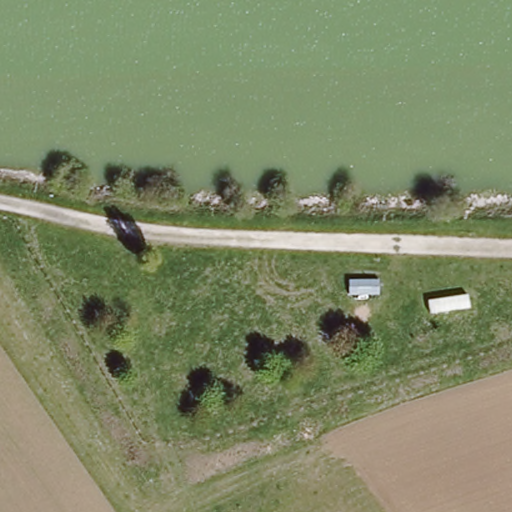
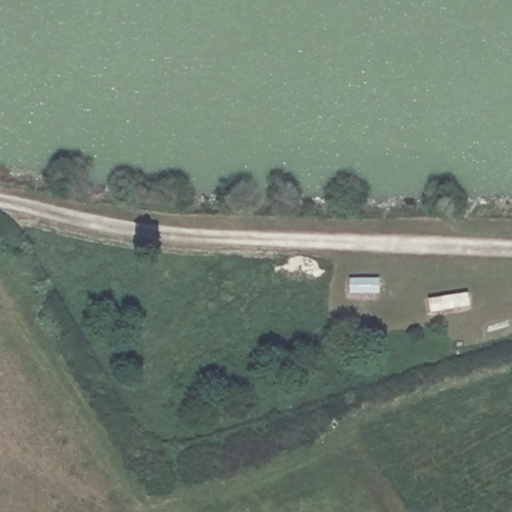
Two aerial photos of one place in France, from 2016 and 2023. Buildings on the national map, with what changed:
unchanged [(378,280),(378,295),(349,296),(348,280),(378,280)]
unchanged [(468,293),(470,309),(427,312),(427,300),(468,293)]

